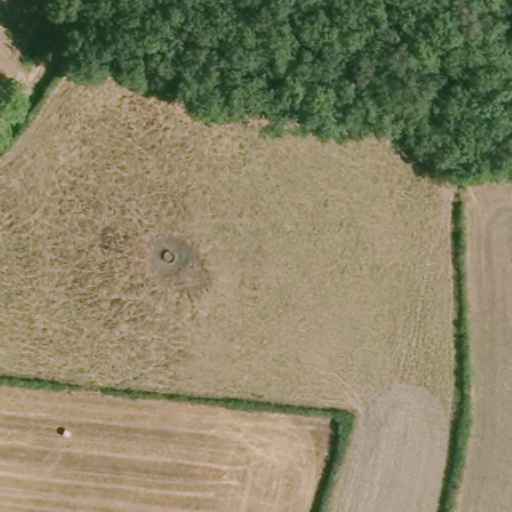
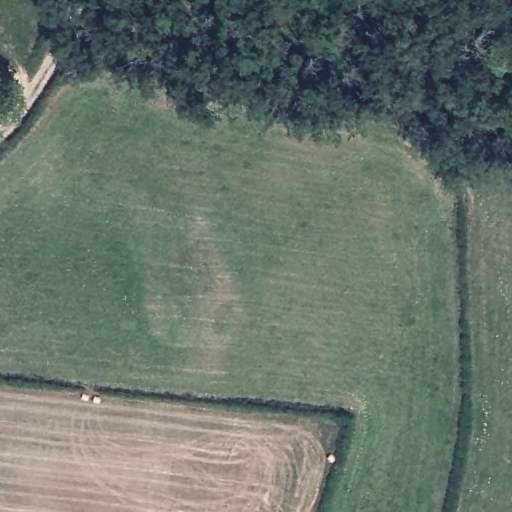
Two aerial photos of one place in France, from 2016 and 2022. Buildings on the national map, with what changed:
[]

